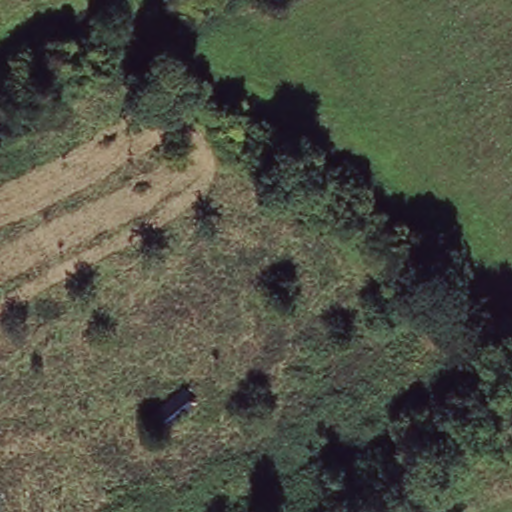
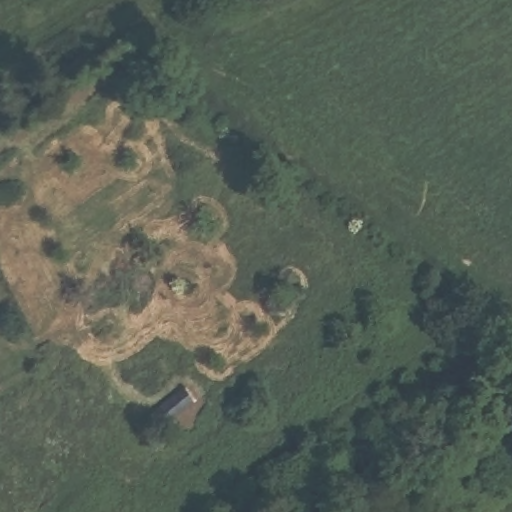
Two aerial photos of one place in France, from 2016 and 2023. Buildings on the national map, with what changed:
unchanged [(189,401),(164,431),(150,419),(175,390),(189,401)]

